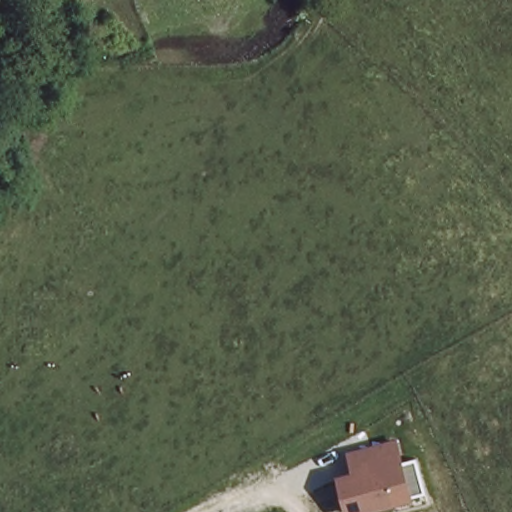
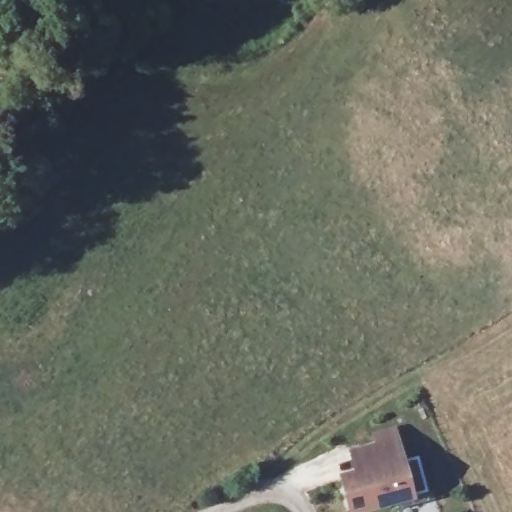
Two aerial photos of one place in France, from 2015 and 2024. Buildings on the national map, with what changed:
unchanged [(398,439),(403,461),(418,456),(426,492),(414,496),(415,501),(364,512),(347,512),(339,475),(355,471),(348,450),(398,439)]

